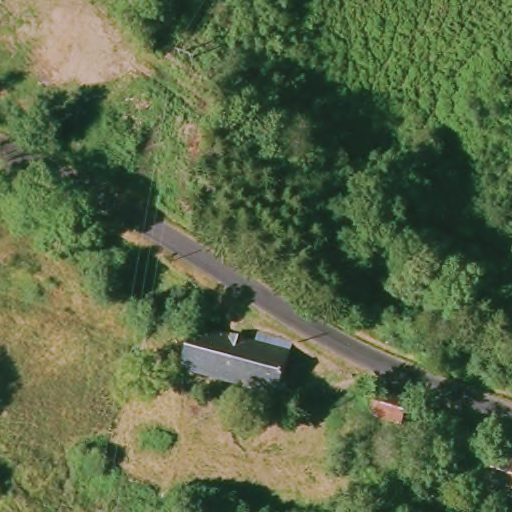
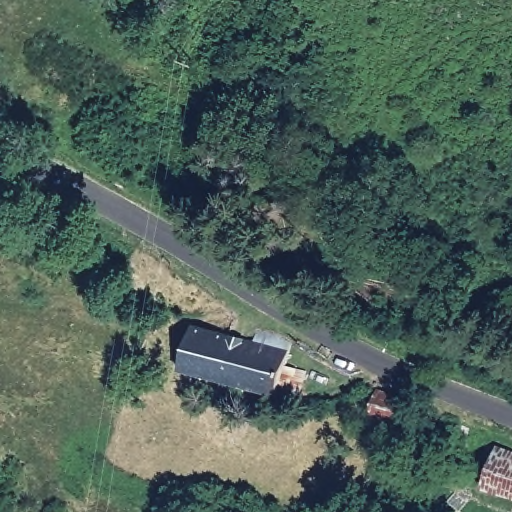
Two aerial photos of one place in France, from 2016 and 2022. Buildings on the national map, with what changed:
unchanged [(300,338),(285,390),(187,366),(200,321),(262,337),(266,322),(300,338)]
unchanged [(414,431),(382,423),(388,393),(421,402),(414,431)]
unchanged [(500,449),(512,453),(512,498),(486,489),(500,449)]

